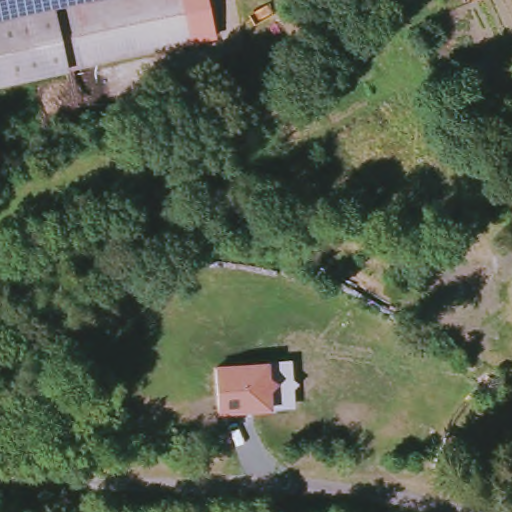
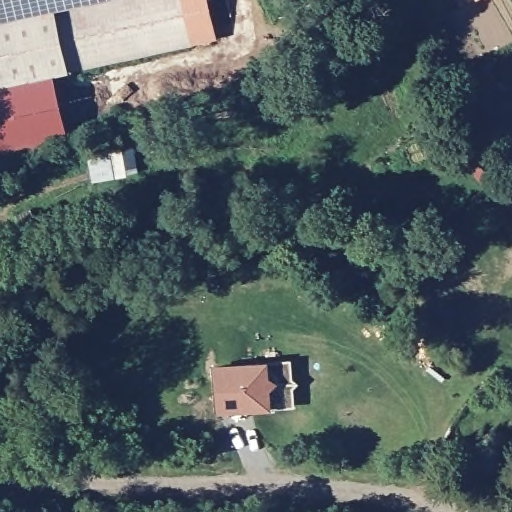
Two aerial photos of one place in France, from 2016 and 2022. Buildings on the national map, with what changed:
unchanged [(0,24),(0,0),(110,0),(0,24)]
unchanged [(110,0),(209,0),(218,39),(0,86),(0,24),(110,0)]
new [(53,75),(67,135),(44,139),(47,150),(0,159),(0,86),(53,75)]
unchanged [(268,361),(290,360),(292,377),(297,382),(293,387),(295,406),(272,409),(218,413),(215,364),(268,361)]

